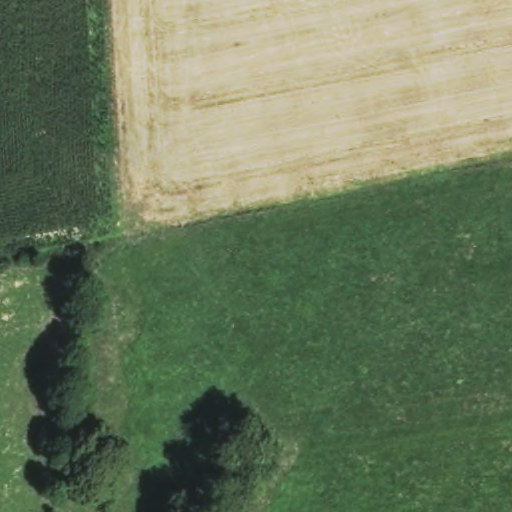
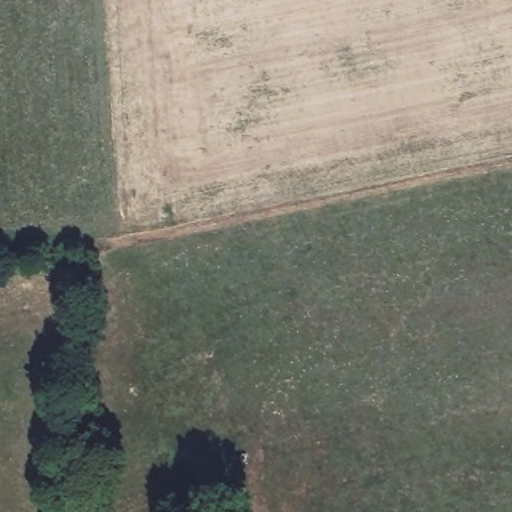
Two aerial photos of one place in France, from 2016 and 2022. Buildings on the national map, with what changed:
[]

